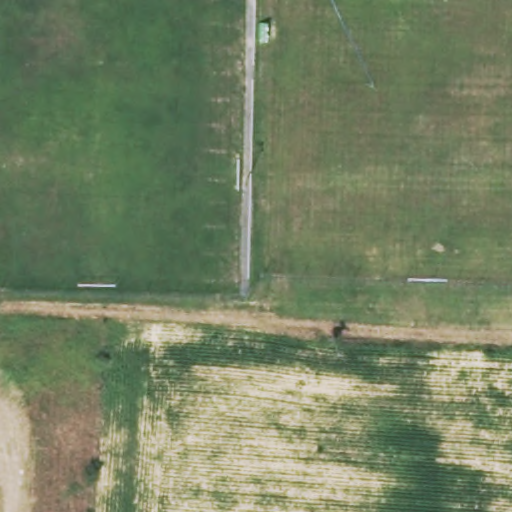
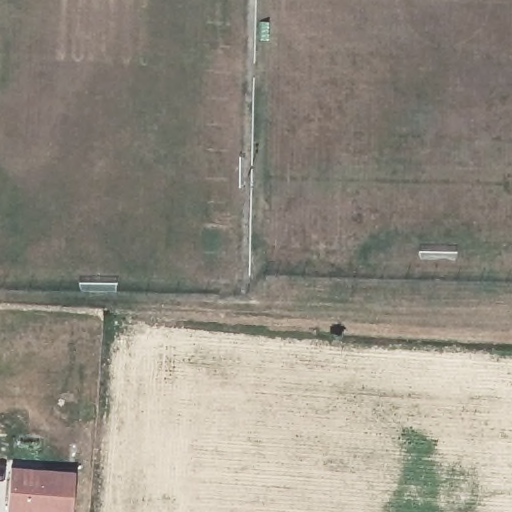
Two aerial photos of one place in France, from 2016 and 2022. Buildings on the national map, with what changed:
new [(39,469),(46,469),(80,472),(76,512),(26,512),(12,511),(16,467),(39,469)]

